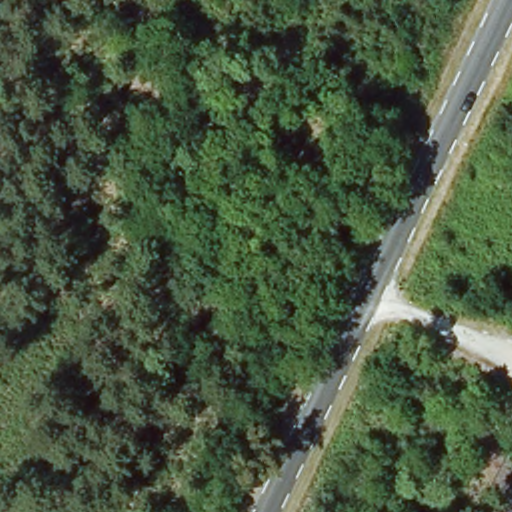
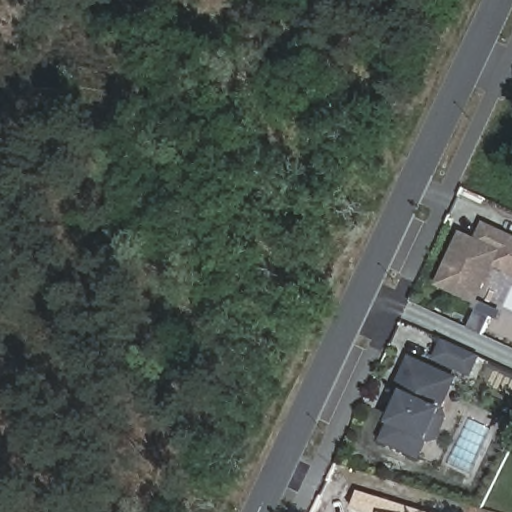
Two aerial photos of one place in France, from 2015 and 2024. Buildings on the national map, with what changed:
new [(436,285),(460,231),(473,239),(482,222),(512,236),(512,275),(494,267),(476,305),(436,285)]
new [(443,339),(481,356),(471,377),(435,360),(443,339)]
new [(445,407),(448,418),(436,441),(428,443),(420,461),(379,441),(388,424),(401,392),(395,388),(410,356),(457,378),(445,407)]
new [(353,508),(358,490),(425,512),(365,512),(353,508)]

